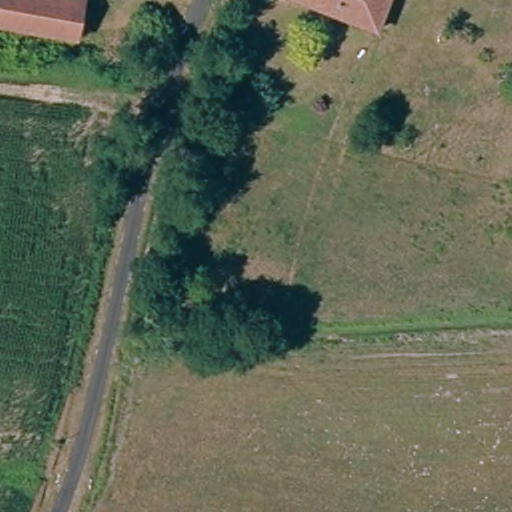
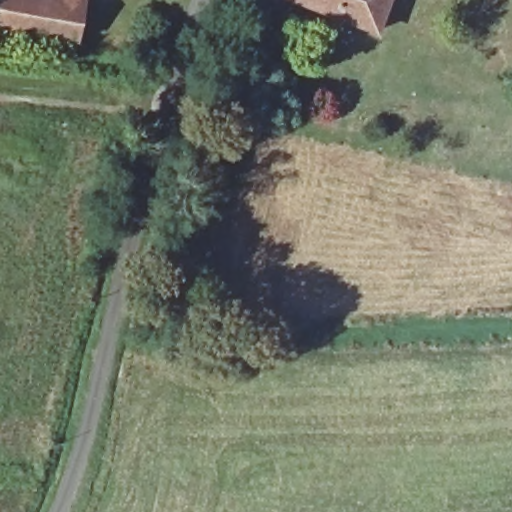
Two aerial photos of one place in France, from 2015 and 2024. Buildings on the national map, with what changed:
unchanged [(86,40),(0,22),(0,0),(53,0),(92,8),(86,40)]
unchanged [(53,0),(94,0),(92,8),(53,0)]
unchanged [(302,0),(392,0),(381,30),(302,0)]

